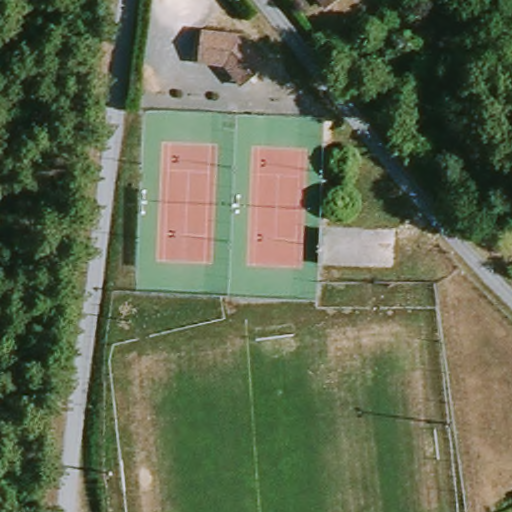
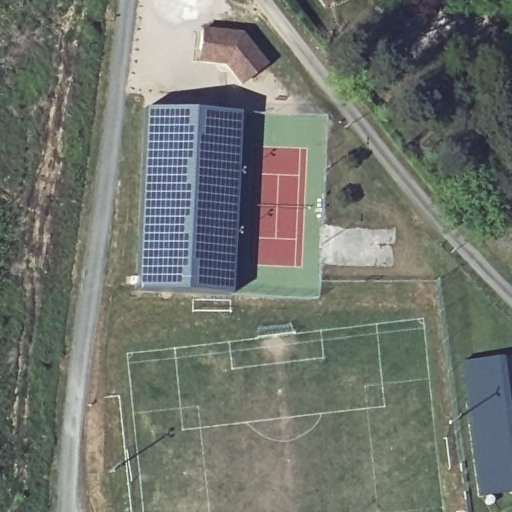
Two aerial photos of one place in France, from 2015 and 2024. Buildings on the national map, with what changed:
unchanged [(343,0),(340,3),(336,0),(343,0)]
unchanged [(254,25),(282,60),(257,81),(236,55),(213,53),(215,41),(217,22),(254,25)]
new [(141,108),(240,112),(231,296),(135,291),(141,108)]
new [(502,357),(512,434),(512,491),(478,495),(460,363),(502,357)]

